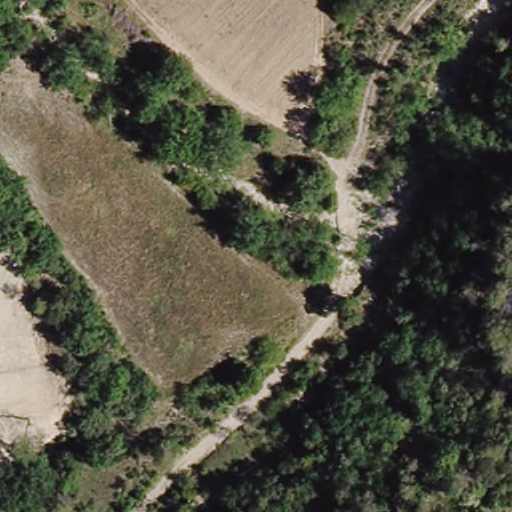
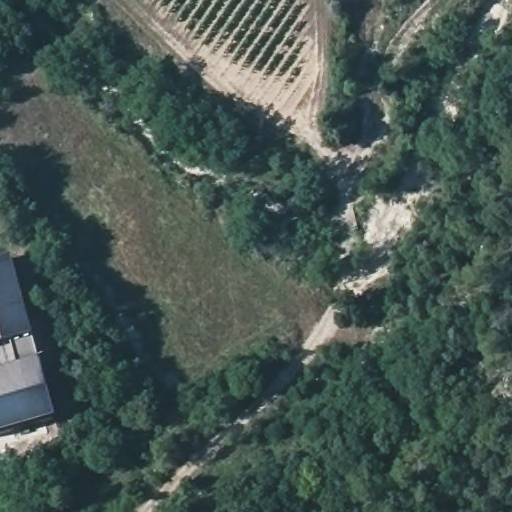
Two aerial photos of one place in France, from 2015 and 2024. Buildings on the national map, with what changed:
new [(10,341),(0,344),(0,260),(11,257),(55,419),(0,434),(0,370),(16,365),(10,341)]

